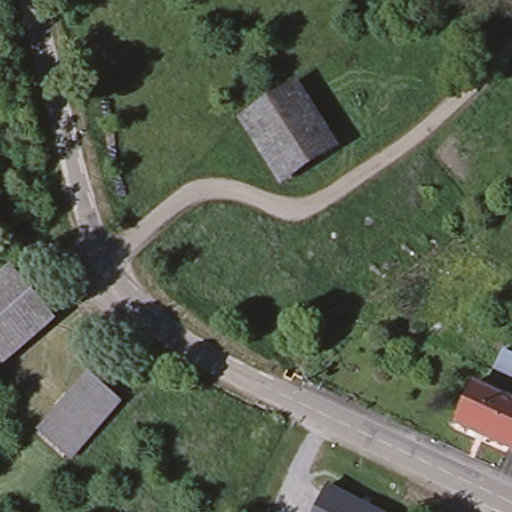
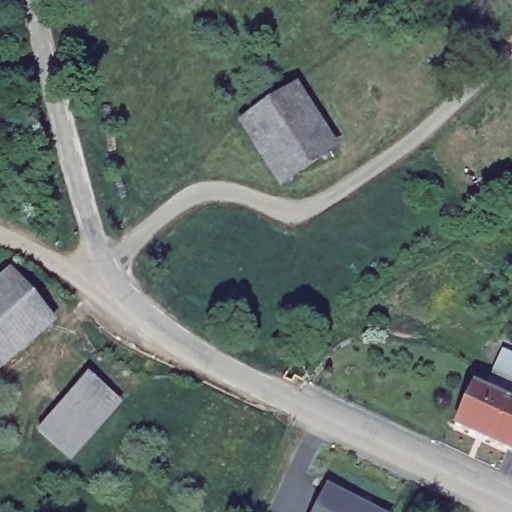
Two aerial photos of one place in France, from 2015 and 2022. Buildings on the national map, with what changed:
unchanged [(298,75),(341,142),(279,183),(239,116),(298,75)]
unchanged [(52,320),(0,365),(0,285),(12,275),(52,320)]
unchanged [(473,384),(485,389),(502,347),(512,352),(512,451),(450,422),(473,384)]
unchanged [(119,403),(70,459),(39,431),(87,375),(119,403)]
unchanged [(327,486),(378,512),(314,512),(327,486)]

